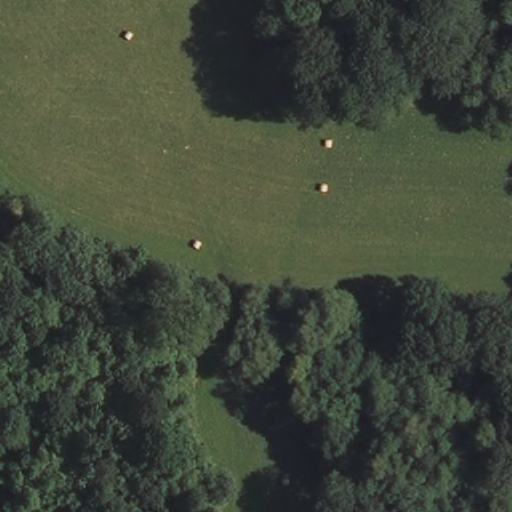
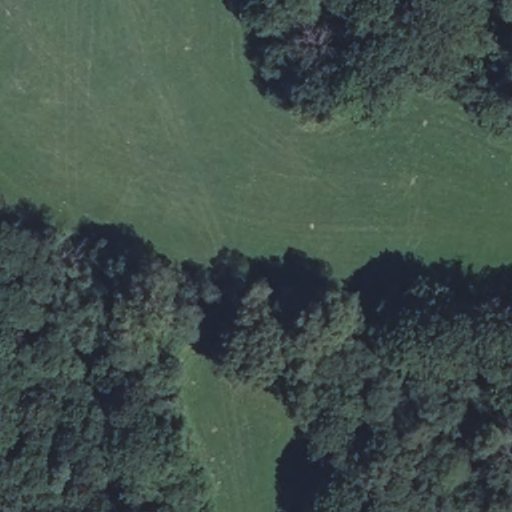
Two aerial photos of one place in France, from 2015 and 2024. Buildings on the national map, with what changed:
[]

